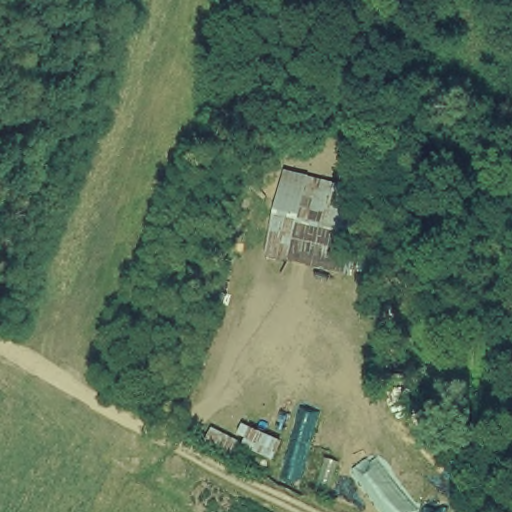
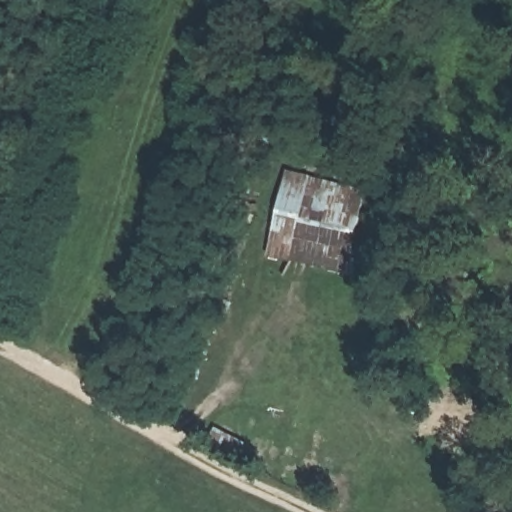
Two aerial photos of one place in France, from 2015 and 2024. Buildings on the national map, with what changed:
unchanged [(367,187),(348,276),(268,253),(288,171),(367,187)]

